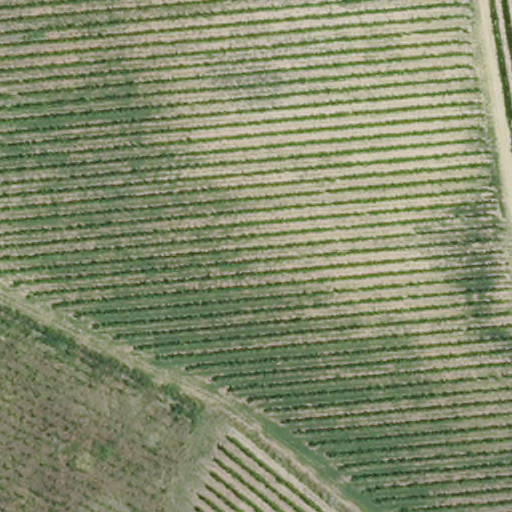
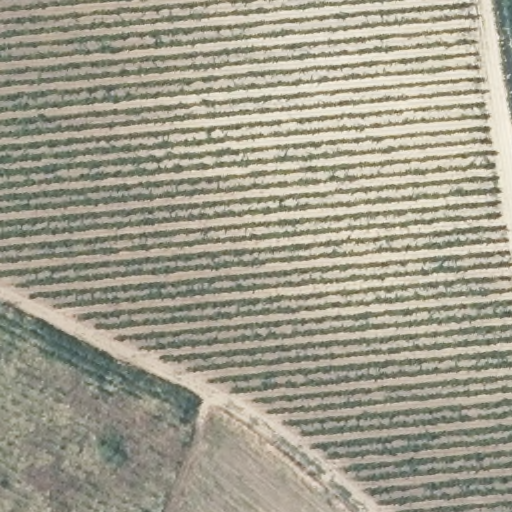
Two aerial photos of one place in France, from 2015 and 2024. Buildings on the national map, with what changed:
[]

